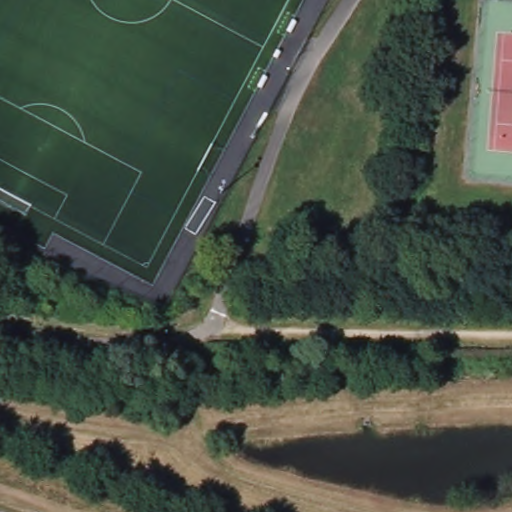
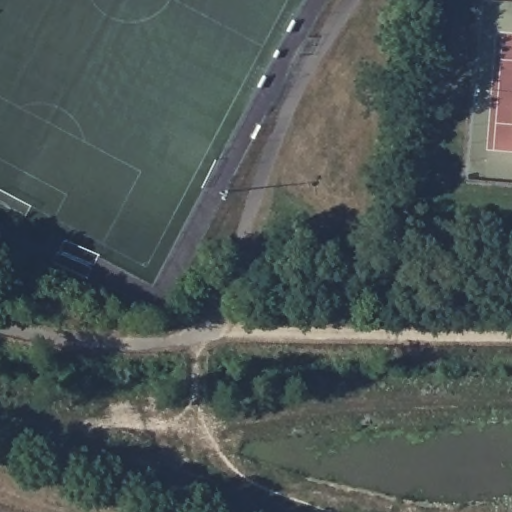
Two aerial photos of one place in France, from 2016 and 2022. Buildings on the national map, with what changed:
[]

